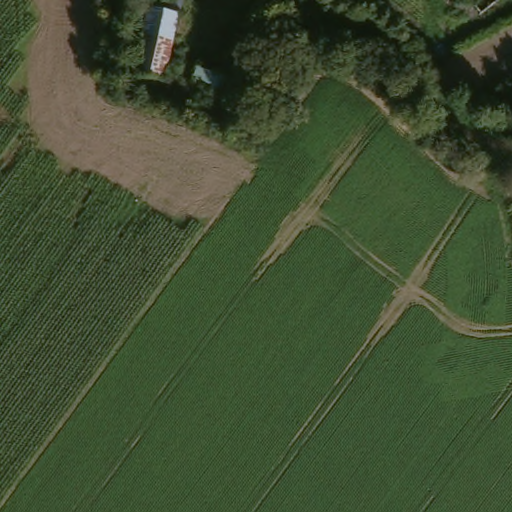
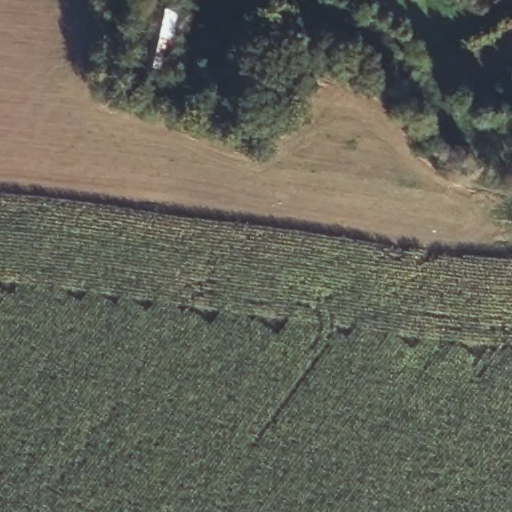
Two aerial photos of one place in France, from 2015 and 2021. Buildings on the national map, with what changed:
unchanged [(172,78),(135,69),(152,0),(190,0),(172,78)]
unchanged [(273,3),(259,0),(274,0),(273,3)]
unchanged [(204,63),(241,77),(235,92),(198,79),(204,63)]

